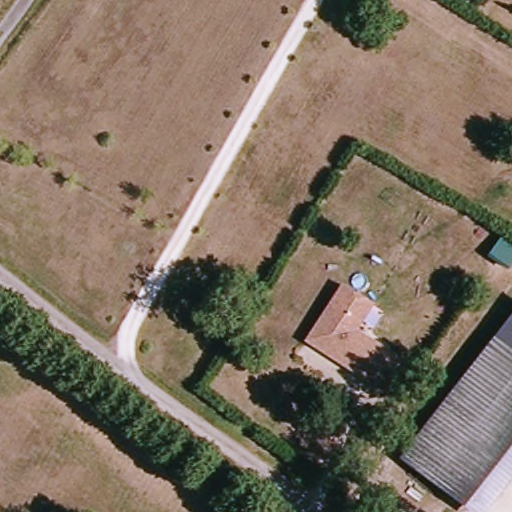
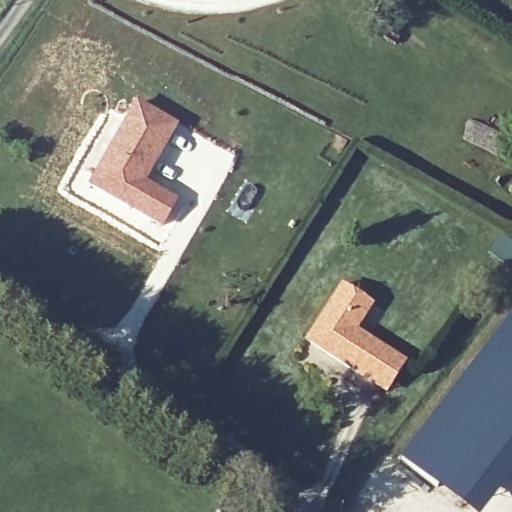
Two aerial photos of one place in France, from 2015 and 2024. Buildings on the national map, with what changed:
new [(135,101),(179,125),(147,180),(179,198),(162,228),(86,186),(135,101)]
unchanged [(320,346),(307,339),(313,329),(343,285),(371,302),(355,330),(380,347),(405,362),(385,392),(363,376),(320,346)]
unchanged [(512,473),(482,512),(469,512),(401,459),(512,318),(512,473)]
unchanged [(236,512),(222,512),(227,506),(236,512)]

